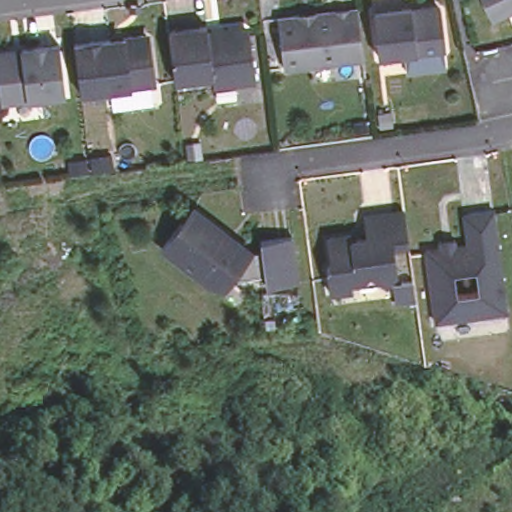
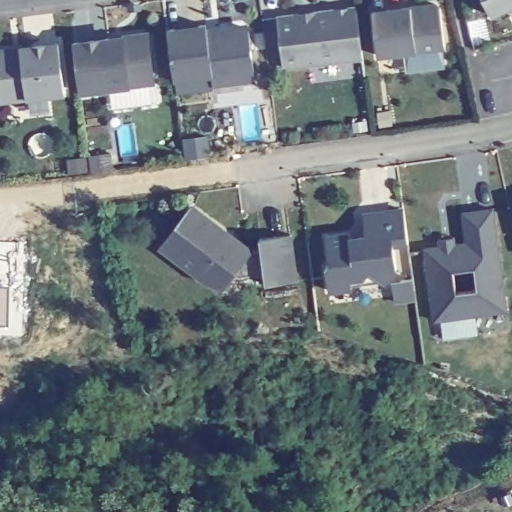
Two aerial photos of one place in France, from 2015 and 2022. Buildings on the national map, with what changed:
unchanged [(484,0),(512,0),(512,7),(491,16),(484,0)]
unchanged [(372,55),(367,13),(405,7),(406,16),(412,15),(411,10),(415,6),(430,4),(434,7),(440,46),(437,47),(440,67),(403,72),(400,52),(372,55)]
unchanged [(282,70),(277,19),(299,16),(303,19),(312,17),(313,15),(356,8),(363,59),(282,70)]
unchanged [(212,87),(211,76),(173,81),(167,32),(205,27),(206,40),(220,37),(227,29),(239,27),(248,35),(255,82),(212,87)]
unchanged [(78,89),(72,37),(108,34),(108,40),(122,39),(125,31),(140,30),(148,35),(152,80),(78,89)]
unchanged [(7,50),(18,50),(57,45),(63,95),(0,103),(0,51),(7,50)]
unchanged [(406,237),(392,240),(395,265),(385,278),(367,265),(362,273),(350,275),(350,283),(327,286),(324,262),(327,257),(325,232),(348,229),(350,235),(364,233),(361,210),(400,205),(406,237)]
unchanged [(465,242),(460,212),(490,208),(505,310),(433,320),(422,249),(465,242)]
unchanged [(295,281),(263,286),(261,275),(236,279),(230,276),(221,288),(220,290),(216,286),(207,280),(206,281),(203,285),(189,275),(190,274),(190,273),(158,250),(177,224),(180,225),(190,211),(220,234),(220,235),(232,244),(233,243),(247,253),(257,251),(256,240),(287,235),(295,281)]
new [(8,288),(7,327),(0,327),(0,287),(8,288)]

